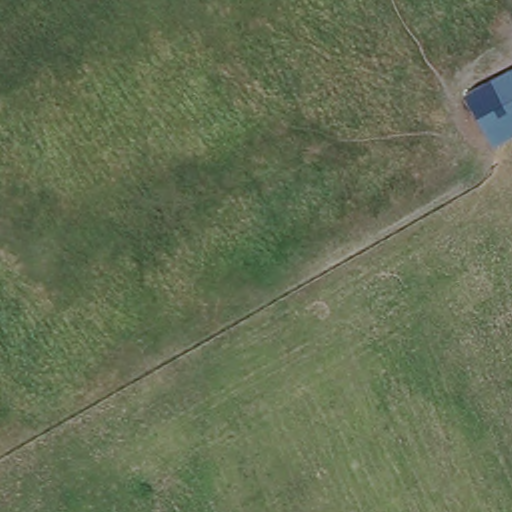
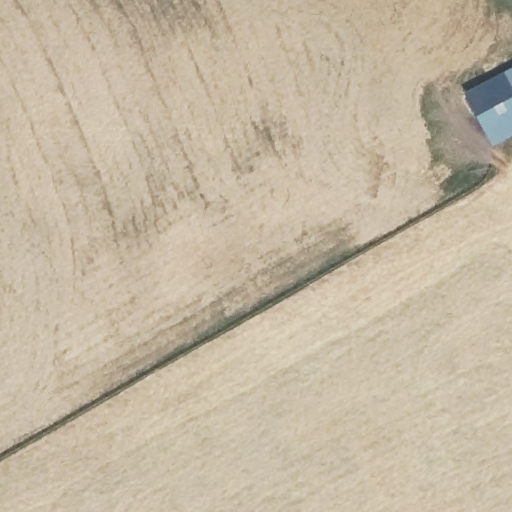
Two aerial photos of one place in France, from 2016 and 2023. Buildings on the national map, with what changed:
unchanged [(512,68),(512,133),(494,142),(467,92),(512,68)]

